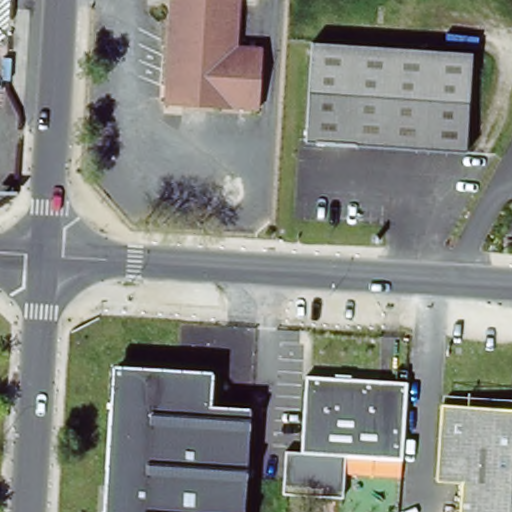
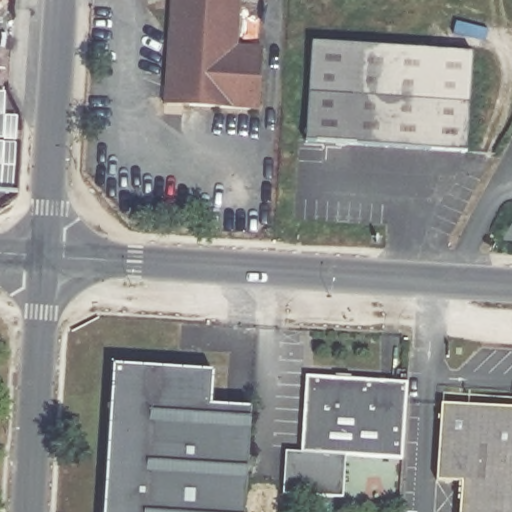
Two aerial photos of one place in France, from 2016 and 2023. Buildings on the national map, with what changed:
unchanged [(163,104),(170,0),(240,0),(236,46),(260,47),(256,110),(163,104)]
unchanged [(311,45),(470,54),(464,153),(304,144),(311,45)]
unchanged [(212,373),(210,405),(250,407),(243,512),(103,512),(113,367),(212,373)]
unchanged [(347,460),(343,502),(284,498),(287,456),(302,457),(307,382),(405,388),(401,463),(347,460)]
unchanged [(461,488),(437,487),(442,410),(512,414),(512,512),(459,512),(461,488)]

